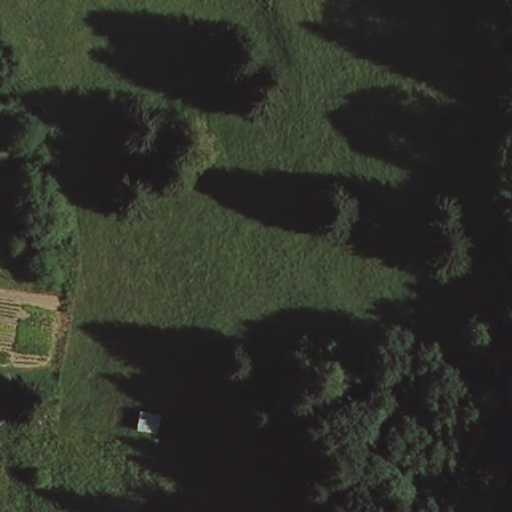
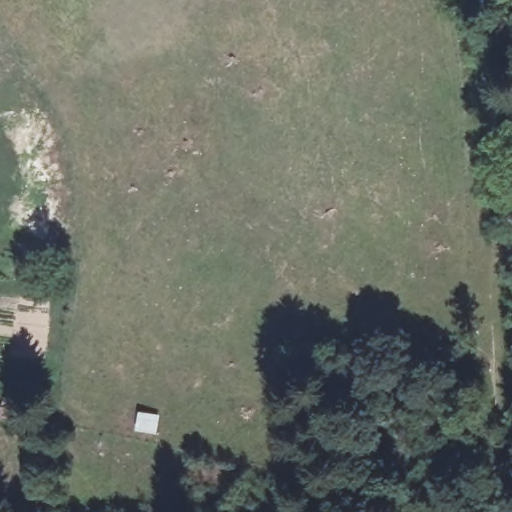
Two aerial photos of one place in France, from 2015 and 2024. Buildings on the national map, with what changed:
unchanged [(141,407),(162,411),(157,434),(137,426),(141,407)]

